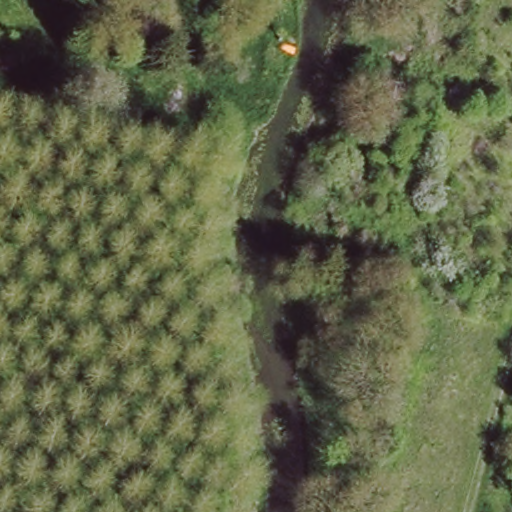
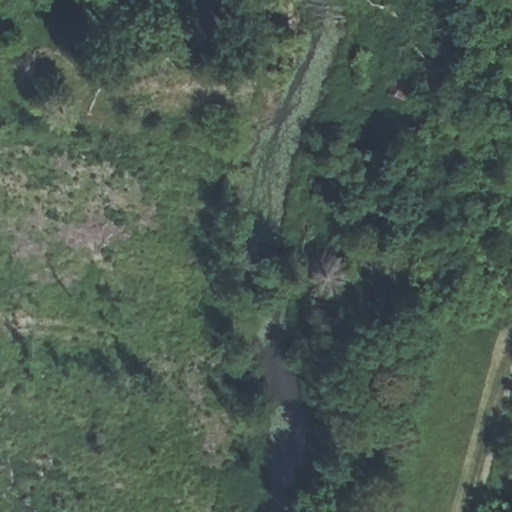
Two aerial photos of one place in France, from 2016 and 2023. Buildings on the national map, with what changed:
unchanged [(369,87),(399,87),(399,107),(364,107),(369,87)]

